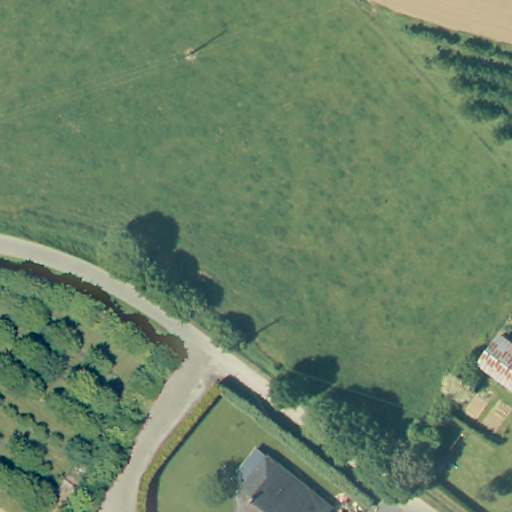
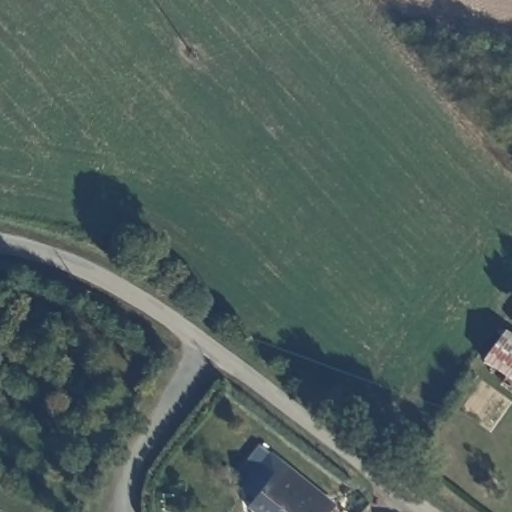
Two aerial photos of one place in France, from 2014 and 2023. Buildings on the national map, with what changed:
unchanged [(502,332),(512,339),(512,382),(482,361),(502,332)]
unchanged [(328,501),(320,512),(253,512),(241,502),(242,500),(236,495),(242,490),(235,485),(263,448),(328,501)]

